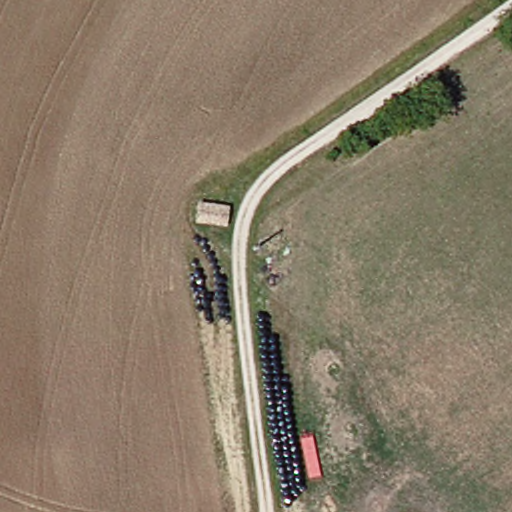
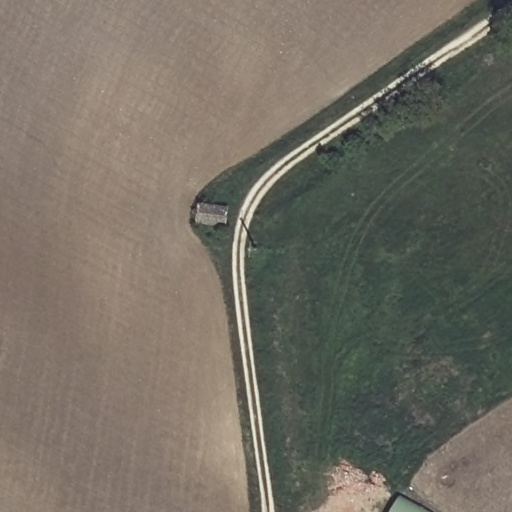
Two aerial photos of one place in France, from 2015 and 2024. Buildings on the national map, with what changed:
unchanged [(234,227),(200,226),(202,202),(235,206),(234,227)]
new [(427,512),(393,512),(402,498),(427,512)]

